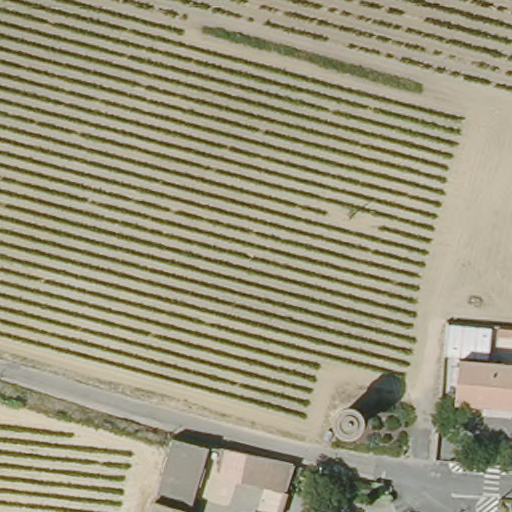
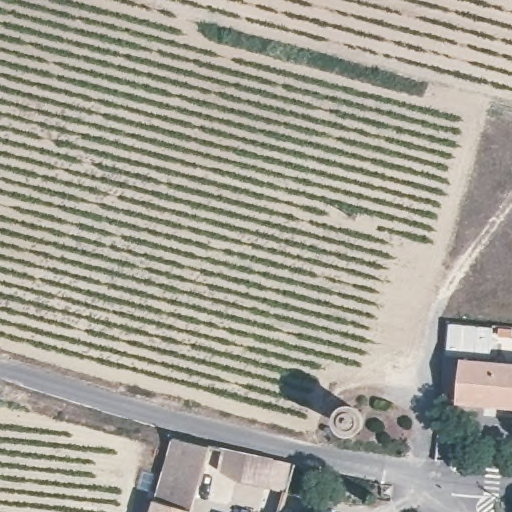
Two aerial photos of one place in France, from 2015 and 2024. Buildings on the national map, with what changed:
unchanged [(450,320),(467,321),(463,360),(447,359),(450,320)]
unchanged [(512,325),(512,331),(500,330),(501,324),(512,325)]
unchanged [(512,366),(512,408),(460,402),(463,360),(512,366)]
unchanged [(176,435),(211,444),(193,511),(158,500),(176,435)]
unchanged [(247,474),(252,454),(298,466),(291,487),(247,474)]
unchanged [(193,511),(193,512),(155,512),(158,500),(193,511)]

